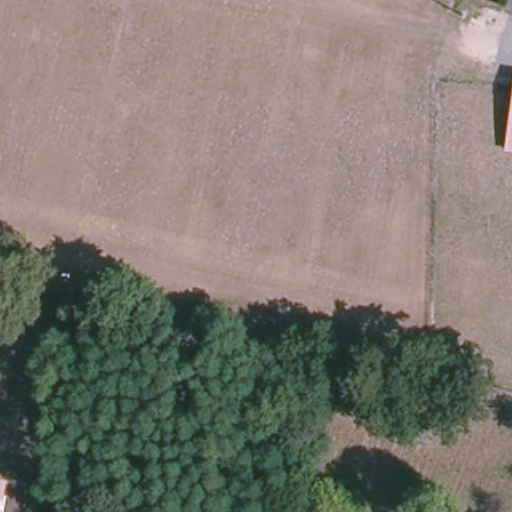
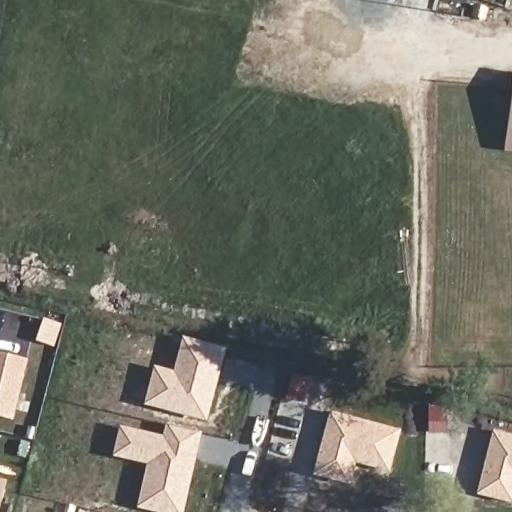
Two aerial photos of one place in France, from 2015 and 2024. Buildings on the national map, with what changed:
unchanged [(512,104),(512,151),(505,150),(512,104)]
new [(144,405),(154,366),(174,371),(183,338),(226,350),(207,422),(144,405)]
new [(29,361),(14,421),(0,418),(0,354),(29,361)]
new [(329,411),(402,429),(391,473),(357,465),(351,486),(312,477),(329,411)]
new [(152,512),(137,509),(147,466),(112,458),(120,426),(163,436),(166,424),(202,433),(183,512),(152,512)]
new [(493,431),(512,435),(512,505),(476,496),(493,431)]
new [(8,481),(0,509),(0,478),(8,481)]

